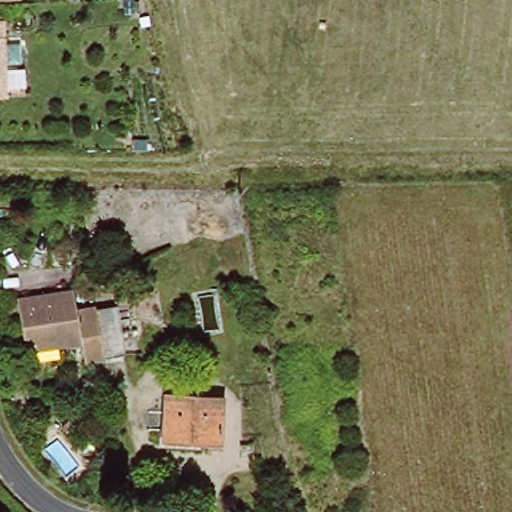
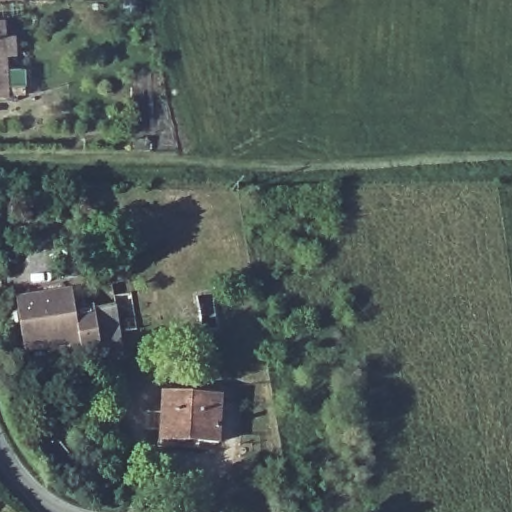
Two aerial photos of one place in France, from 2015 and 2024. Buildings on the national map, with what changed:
unchanged [(0,5),(0,0),(18,0),(19,4),(5,5),(0,5)]
unchanged [(1,41),(1,97),(0,97),(0,41),(1,41)]
unchanged [(123,298),(129,349),(105,352),(83,355),(80,335),(25,342),(17,292),(72,286),(74,304),(98,301),(123,298)]
unchanged [(217,401),(213,446),(157,440),(162,397),(217,401)]

